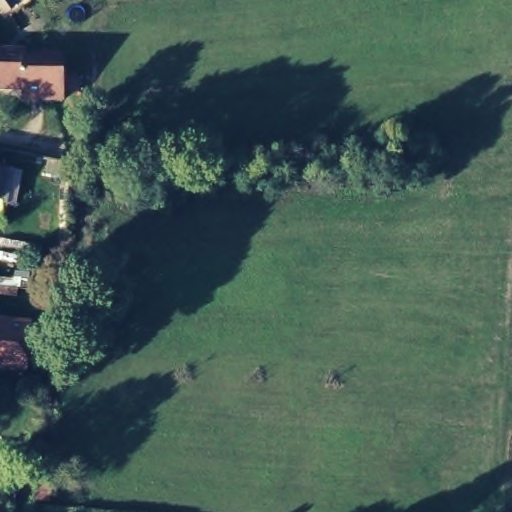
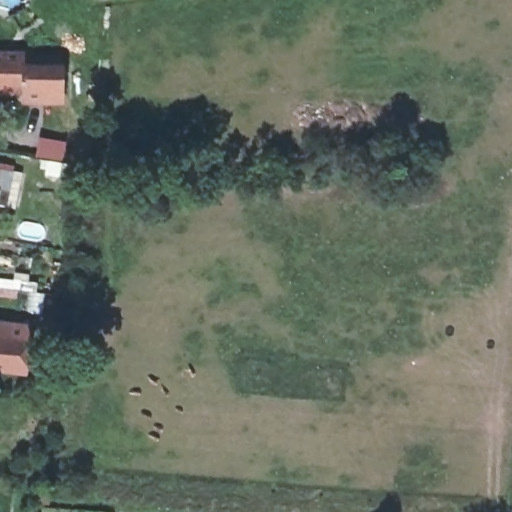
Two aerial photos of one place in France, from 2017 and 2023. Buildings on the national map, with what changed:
unchanged [(18,55),(18,66),(18,90),(16,90),(0,89),(0,54),(18,55)]
unchanged [(18,90),(18,66),(55,67),(55,99),(16,99),(16,90),(18,90)]
unchanged [(9,171),(5,194),(0,193),(0,169),(9,171)]
unchanged [(34,320),(31,365),(0,362),(0,317),(34,320)]

